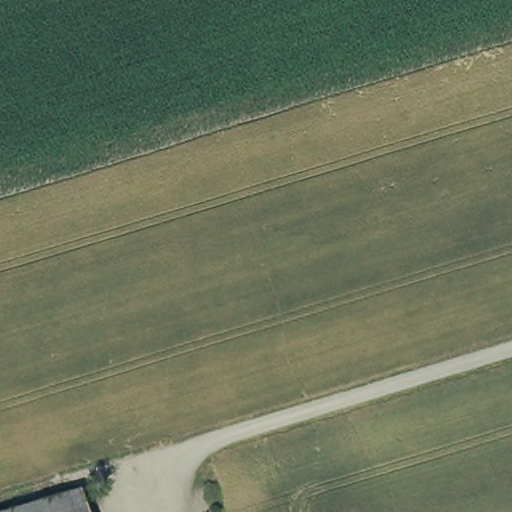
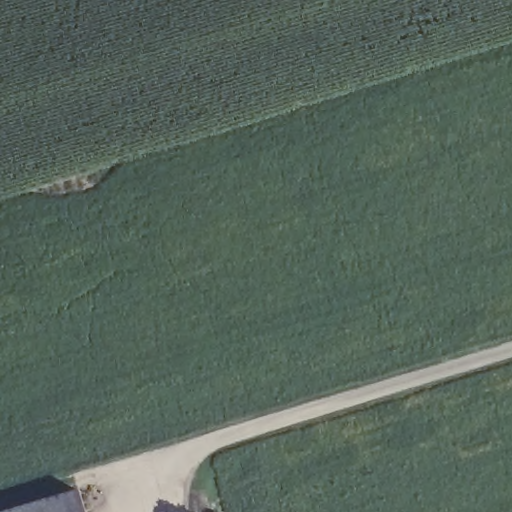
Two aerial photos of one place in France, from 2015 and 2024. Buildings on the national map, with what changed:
unchanged [(76,512),(0,512),(0,509),(67,488),(76,512)]

